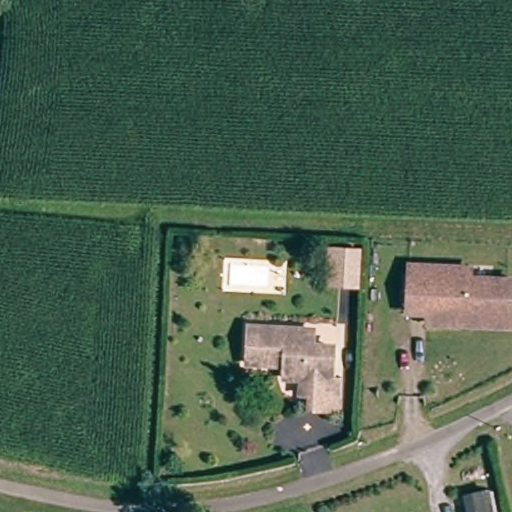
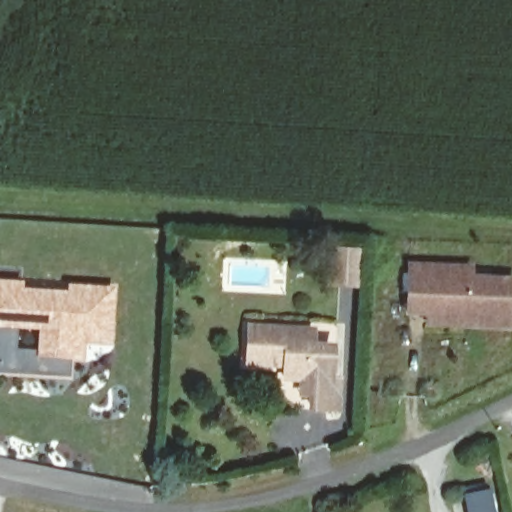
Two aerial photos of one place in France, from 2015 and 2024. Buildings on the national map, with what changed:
new [(364,303),(357,302),(358,289),(329,288),(332,247),(366,249),(364,303)]
unchanged [(434,304),(413,303),(416,256),(477,259),(476,269),(512,270),(512,317),(480,316),(434,314),(434,304)]
new [(24,288),(67,291),(67,284),(115,288),(113,344),(84,343),(84,360),(70,359),(70,379),(0,375),(0,279),(24,281),(24,288)]
unchanged [(303,378),(286,376),(286,363),(250,361),(252,324),(313,327),(313,343),(333,344),(331,378),(342,379),(340,408),(315,407),(316,393),(302,393),(303,378)]
unchanged [(501,512),(477,512),(472,490),(494,485),(501,512)]

